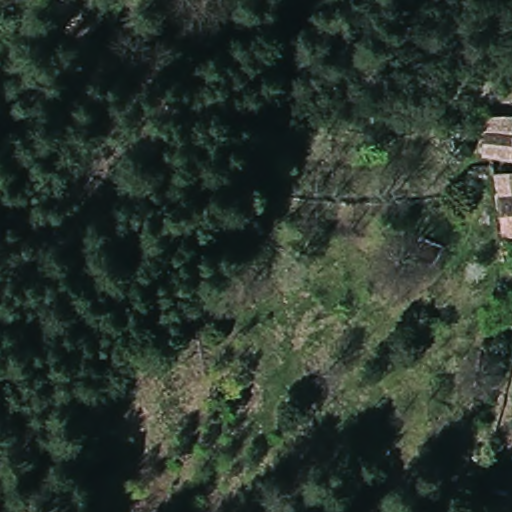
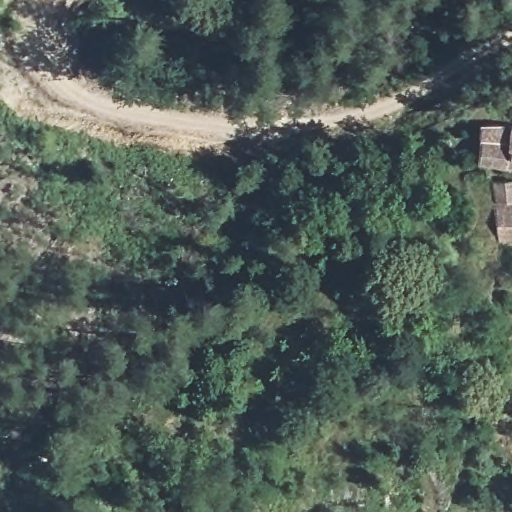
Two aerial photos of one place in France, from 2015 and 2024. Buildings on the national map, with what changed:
unchanged [(481,170),(481,134),(511,129),(512,129),(512,171),(501,171),(481,170)]
unchanged [(487,184),(505,174),(512,199),(512,241),(505,243),(487,184)]

